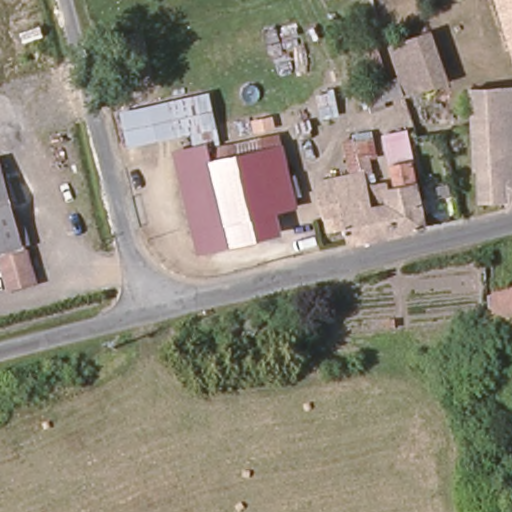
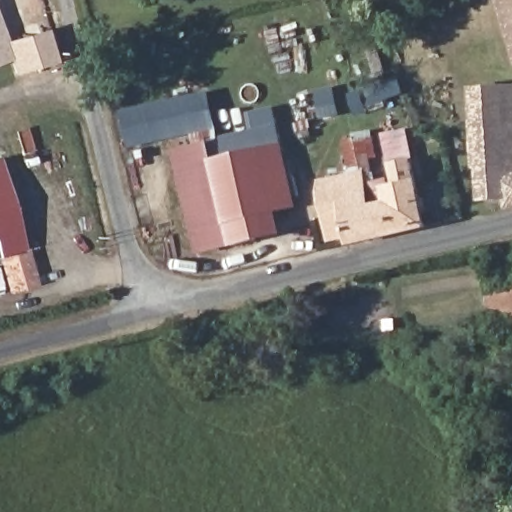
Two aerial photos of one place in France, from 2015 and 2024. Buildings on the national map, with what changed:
unchanged [(512,50),(495,0),(512,0),(512,50)]
new [(60,66),(34,73),(20,77),(15,60),(10,62),(0,35),(0,20),(10,46),(25,42),(50,34),(60,66)]
unchanged [(405,44),(438,33),(453,80),(421,92),(405,44)]
new [(10,62),(0,65),(0,35),(10,62)]
unchanged [(362,94),(411,76),(417,93),(369,110),(362,94)]
unchanged [(478,121),(477,89),(512,85),(512,198),(483,198),(478,121)]
unchanged [(302,204),(261,210),(267,242),(246,247),(245,224),(229,227),(237,248),(204,257),(180,165),(197,161),(191,134),(131,146),(119,111),(197,91),(211,136),(219,132),(221,145),(282,132),(302,204)]
unchanged [(326,191),(331,191),(327,173),(355,166),(348,134),(359,132),(369,179),(391,175),(386,153),(410,147),(430,226),(351,244),(343,208),(330,210),(326,191)]
unchanged [(22,252),(0,257),(0,166),(22,252)]
unchanged [(9,296),(7,287),(1,263),(25,257),(31,281),(34,290),(9,296)]
unchanged [(493,341),(490,321),(491,297),(512,292),(512,341),(496,346),(493,341)]

